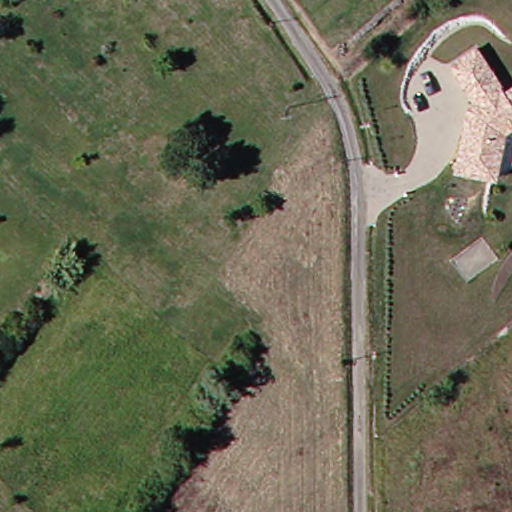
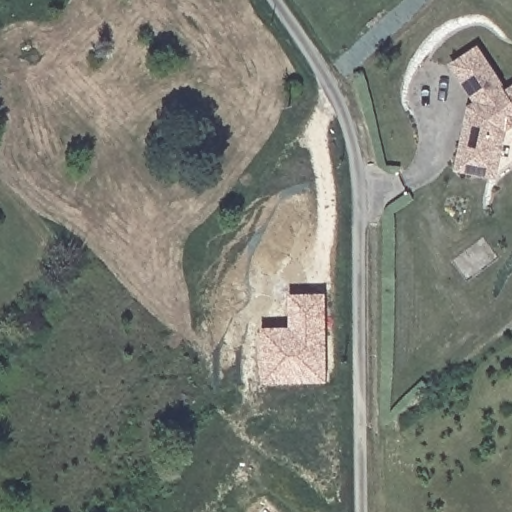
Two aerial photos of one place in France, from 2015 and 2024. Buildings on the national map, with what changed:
unchanged [(506,88),(512,85),(512,130),(507,133),(497,181),(453,172),(466,107),(472,103),(450,66),(479,47),(506,88)]
new [(261,329),(289,328),(288,294),(326,294),(328,383),(262,384),(261,329)]

